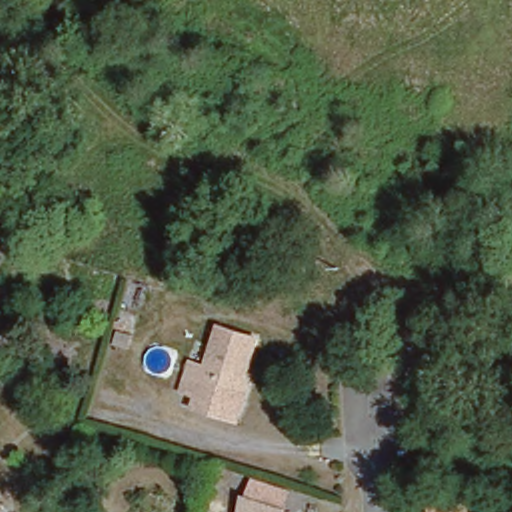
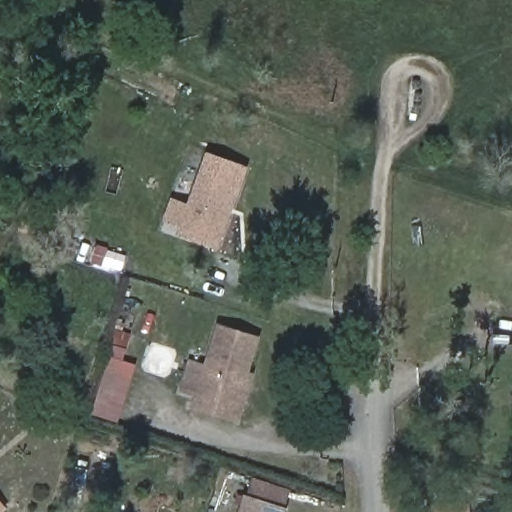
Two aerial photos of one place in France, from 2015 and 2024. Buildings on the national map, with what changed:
new [(220,247),(176,233),(178,226),(163,221),(170,198),(186,204),(205,153),(247,167),(220,247)]
unchanged [(240,410),(185,392),(194,363),(209,367),(222,325),(260,338),(240,410)]
new [(137,366),(117,423),(91,416),(116,330),(131,335),(122,360),(137,366)]
unchanged [(285,506),(284,512),(237,512),(244,493),(285,506)]
unchanged [(468,512),(430,512),(428,503),(466,500),(468,512)]
new [(4,512),(0,512),(0,502),(7,509),(4,512)]

